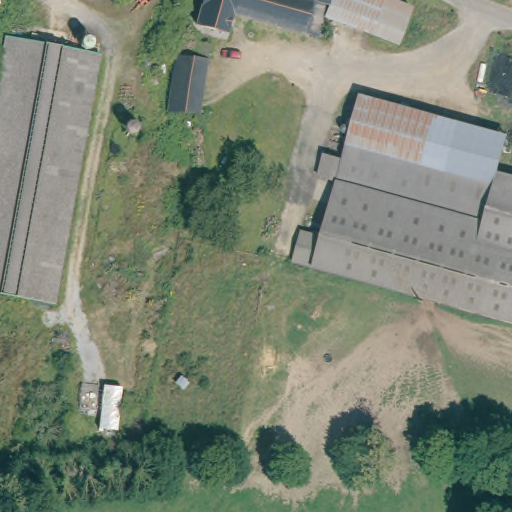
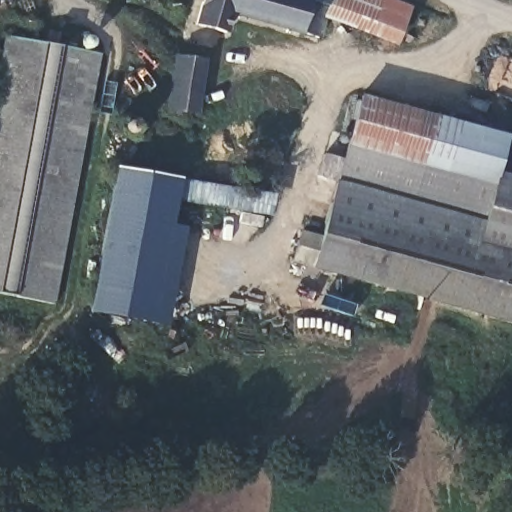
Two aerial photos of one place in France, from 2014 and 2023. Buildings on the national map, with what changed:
unchanged [(326,36),(241,3),(234,22),(205,11),(209,0),(339,0),(338,4),(326,36)]
unchanged [(412,34),(338,4),(339,0),(399,0),(423,9),(412,34)]
unchanged [(0,283),(0,122),(20,29),(106,48),(56,295),(0,283)]
demolished [(184,40),(213,46),(210,63),(180,58),(184,40)]
unchanged [(171,101),(180,58),(210,63),(201,109),(171,101)]
unchanged [(512,137),(512,145),(504,173),(500,186),(351,133),(358,112),(368,85),(429,108),(512,137)]
unchanged [(512,176),(512,323),(291,249),(301,219),(319,225),(338,169),(318,163),(325,141),(346,149),(351,133),(500,186),(504,173),(512,176)]
new [(115,169),(181,180),(173,225),(186,227),(168,326),(90,311),(115,169)]

